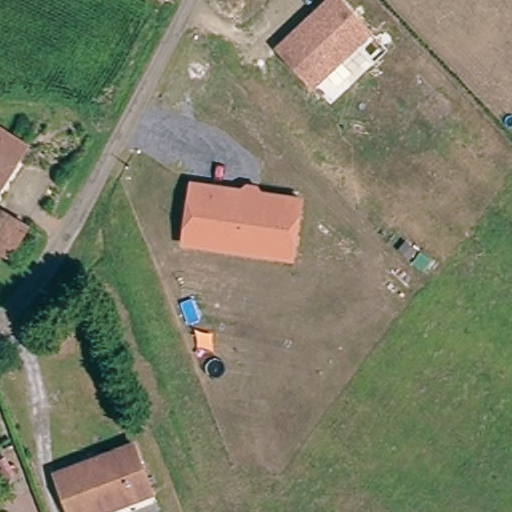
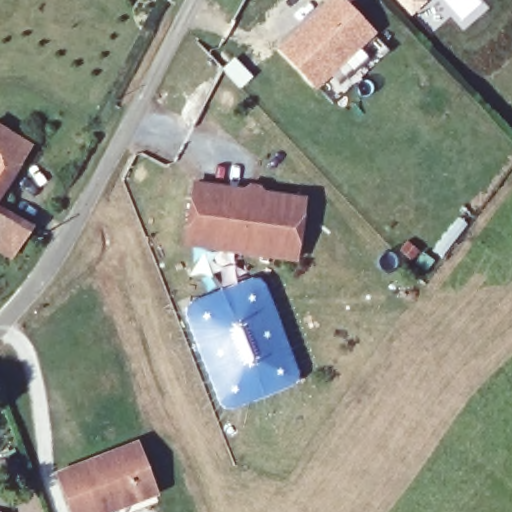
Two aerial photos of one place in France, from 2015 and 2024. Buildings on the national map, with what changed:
unchanged [(330,0),(345,0),(373,30),(317,84),(282,46),(330,0)]
unchanged [(31,146),(17,165),(0,194),(0,126),(31,146)]
unchanged [(256,251),(236,248),(189,241),(191,226),(197,182),(246,189),(251,184),(262,186),(266,192),(305,198),(299,242),(297,257),(256,251)]
unchanged [(30,225),(16,246),(7,262),(0,257),(0,207),(30,225)]
new [(222,288),(217,270),(234,266),(237,282),(259,276),(273,307),(300,378),(222,409),(180,305),(222,288)]
unchanged [(57,471),(135,441),(156,494),(126,506),(110,512),(75,512),(57,471)]

